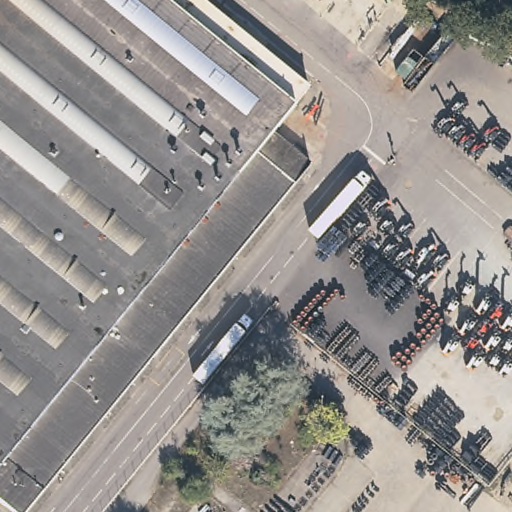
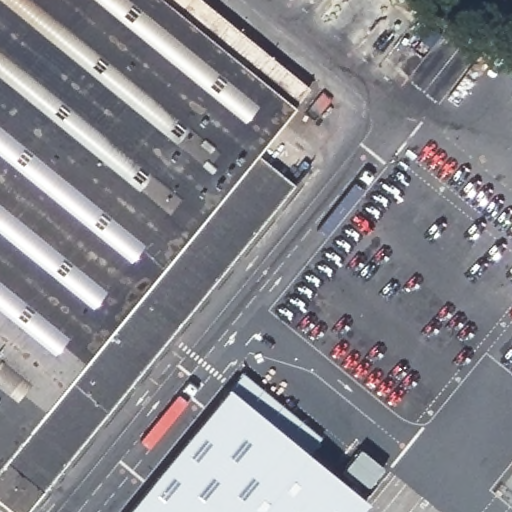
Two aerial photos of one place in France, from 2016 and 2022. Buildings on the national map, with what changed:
unchanged [(306,83),(293,102),(270,134),(310,162),(22,512),(16,512),(0,500),(0,0),(204,0),(306,83)]
demolished [(496,208),(490,217),(437,175),(443,168),(496,208)]
demolished [(407,180),(368,227),(351,216),(389,169),(407,180)]
new [(125,512),(228,386),(367,502),(359,512),(125,512)]

